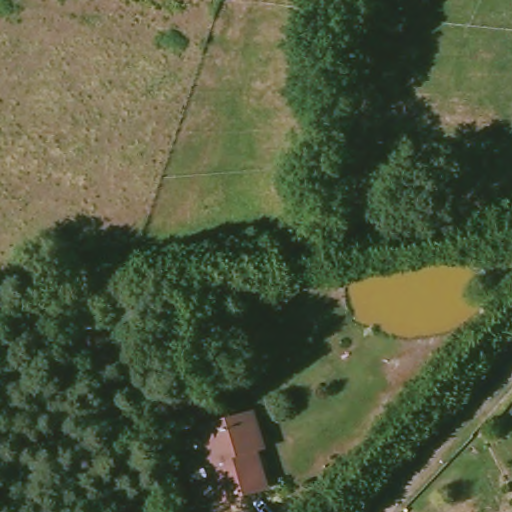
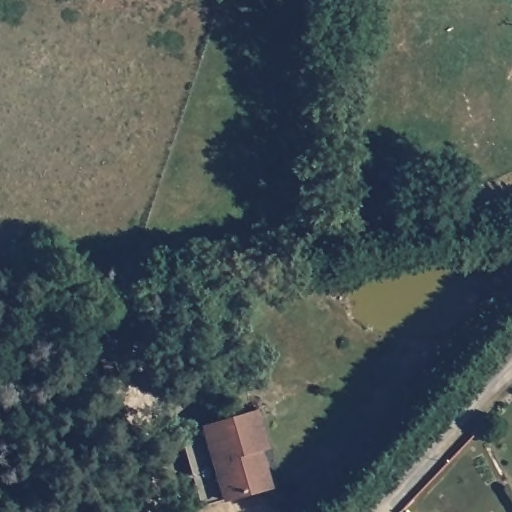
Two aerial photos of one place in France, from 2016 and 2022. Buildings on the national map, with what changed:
unchanged [(263,491),(212,503),(195,430),(259,415),(268,449),(261,450),(270,490),(263,491)]

